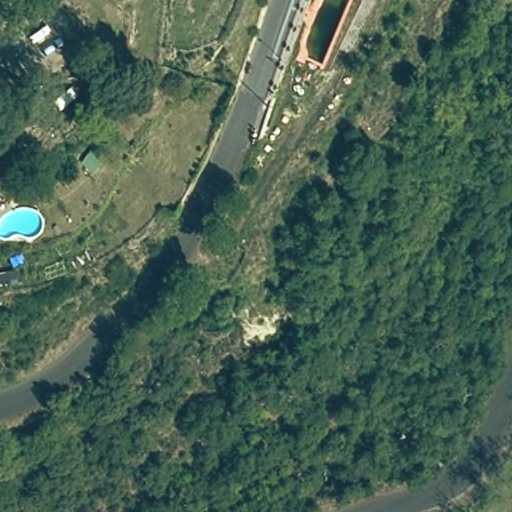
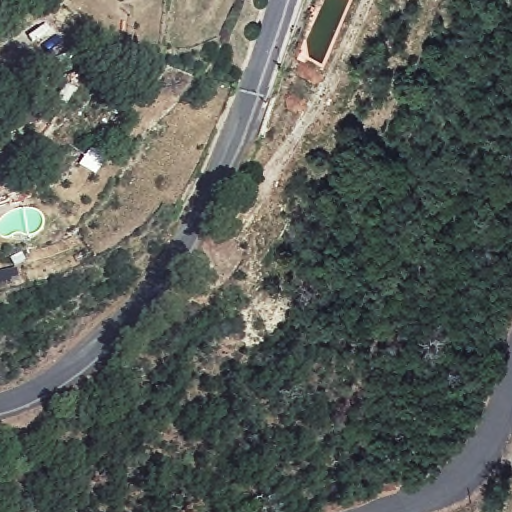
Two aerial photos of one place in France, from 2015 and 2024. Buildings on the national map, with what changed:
[]

